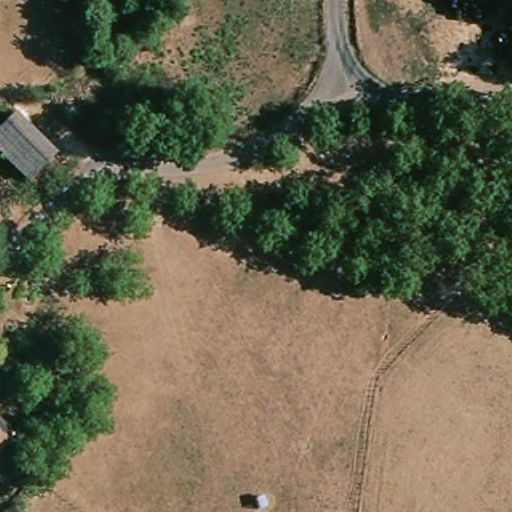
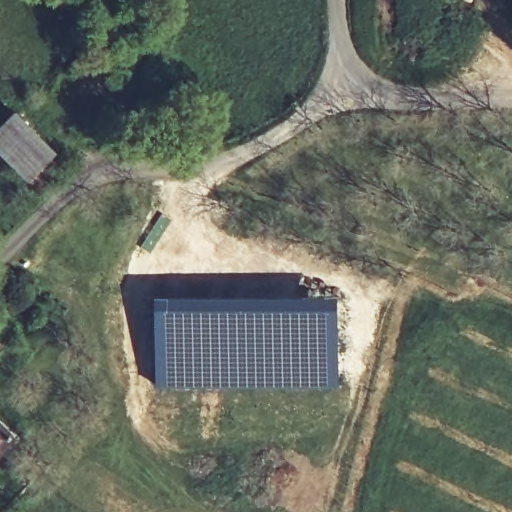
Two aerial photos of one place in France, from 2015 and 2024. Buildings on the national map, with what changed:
unchanged [(0,149),(0,123),(17,111),(60,173),(31,193),(0,149)]
new [(160,212),(172,220),(150,254),(139,247),(160,212)]
new [(340,295),(340,388),(157,388),(156,294),(340,295)]
unchanged [(5,440),(20,454),(7,468),(0,462),(0,421),(12,433),(5,440)]

